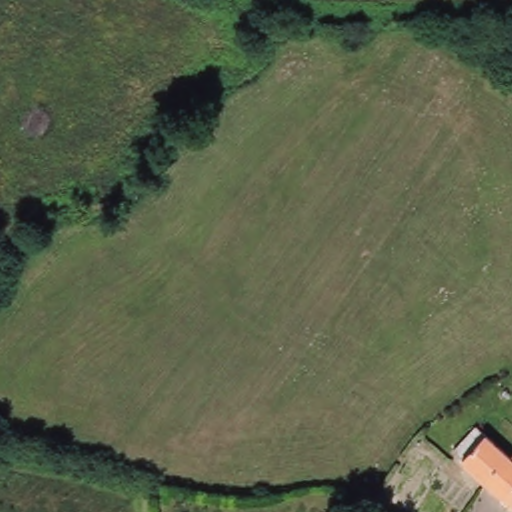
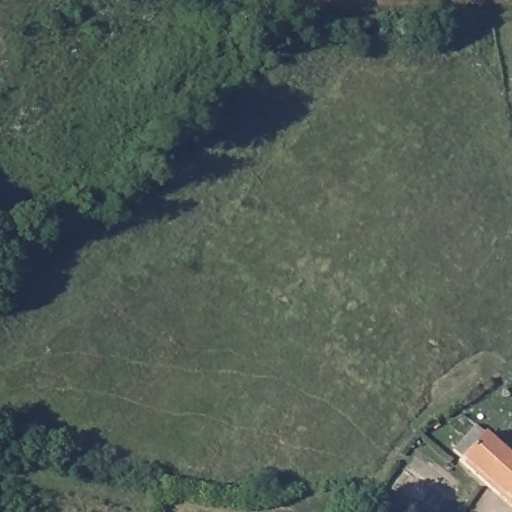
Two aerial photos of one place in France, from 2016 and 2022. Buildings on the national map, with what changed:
unchanged [(458,451),(481,426),(512,454),(512,499),(467,458),(458,451)]

